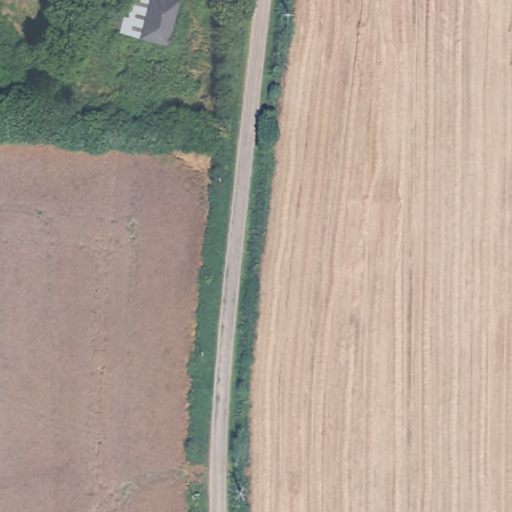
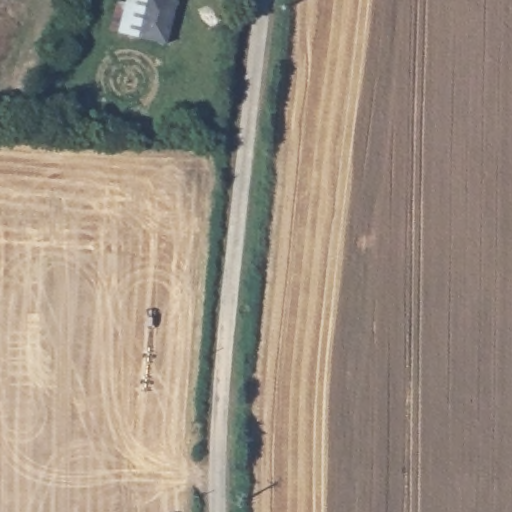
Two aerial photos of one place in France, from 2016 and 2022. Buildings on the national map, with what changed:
unchanged [(163,52),(114,39),(126,0),(130,0),(172,11),(163,52)]

